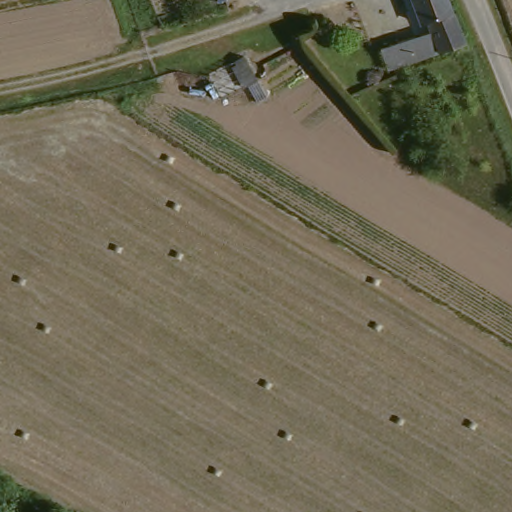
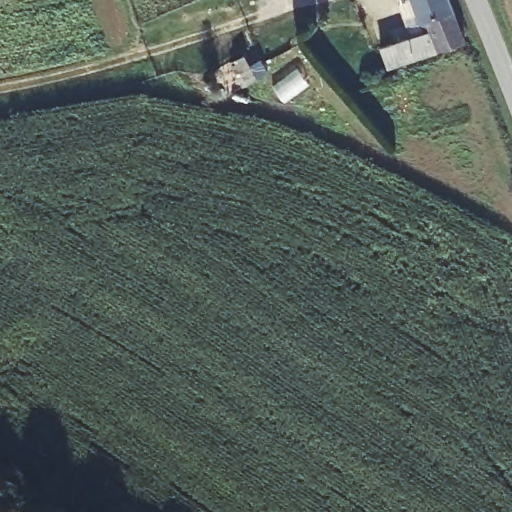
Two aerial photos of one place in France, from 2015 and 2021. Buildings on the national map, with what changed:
unchanged [(470,35),(466,37),(446,44),(437,24),(433,16),(428,18),(421,0),(455,0),(470,35)]
unchanged [(397,64),(388,45),(437,24),(446,44),(397,64)]

